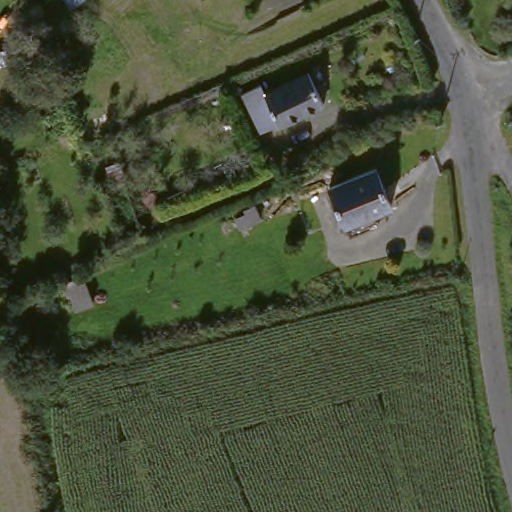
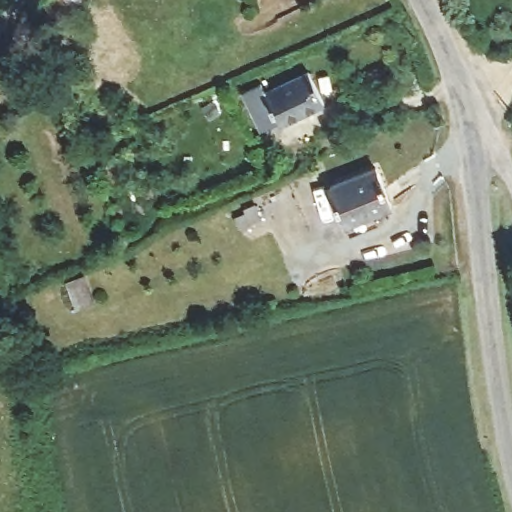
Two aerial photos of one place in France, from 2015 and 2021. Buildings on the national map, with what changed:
unchanged [(264,94),(306,80),(323,113),(281,130),(257,136),(242,101),(264,94)]
unchanged [(373,174),(388,214),(343,229),(327,189),(373,174)]
unchanged [(78,280),(88,309),(64,315),(61,308),(36,315),(44,348),(26,352),(17,302),(78,280)]

